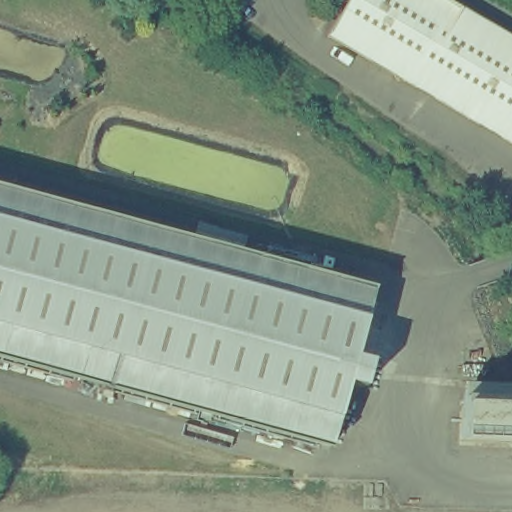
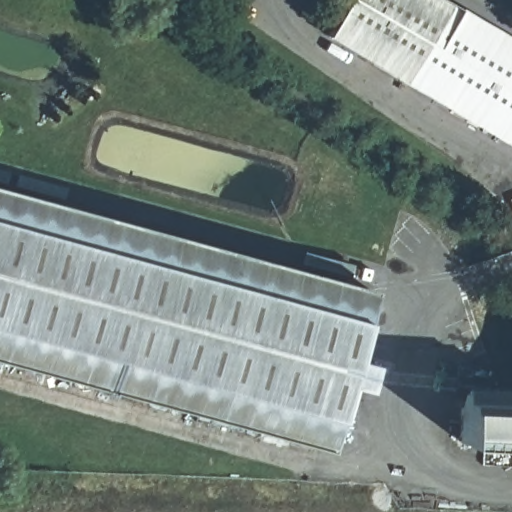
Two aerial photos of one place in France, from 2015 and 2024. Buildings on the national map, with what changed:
unchanged [(472,15),(512,39),(512,146),(479,126),(334,37),(357,0),(448,0),(472,15)]
unchanged [(371,297),(326,453),(26,369),(0,362),(0,193),(371,297)]
unchanged [(512,412),(512,446),(458,443),(459,410),(511,411),(512,412)]

